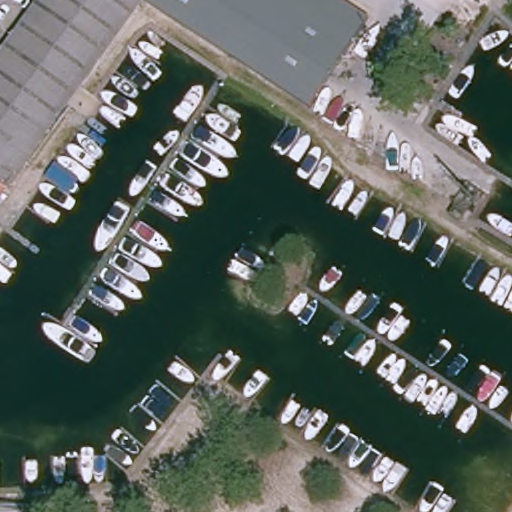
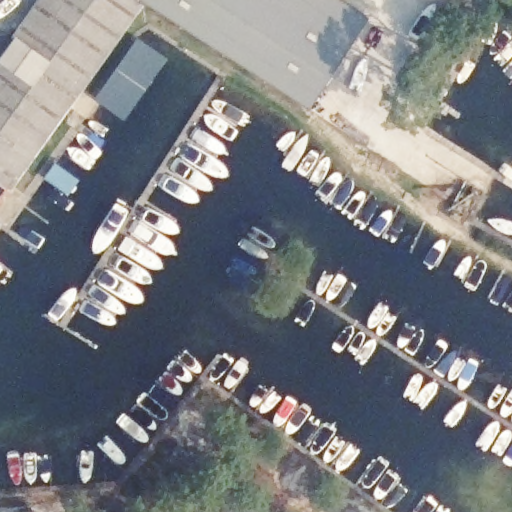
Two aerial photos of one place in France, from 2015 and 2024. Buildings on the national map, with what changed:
unchanged [(368,29),(308,122),(193,39),(144,4),(0,206),(0,67),(48,0),(328,0),(368,29)]
new [(95,98),(138,37),(169,58),(125,119),(95,98)]

